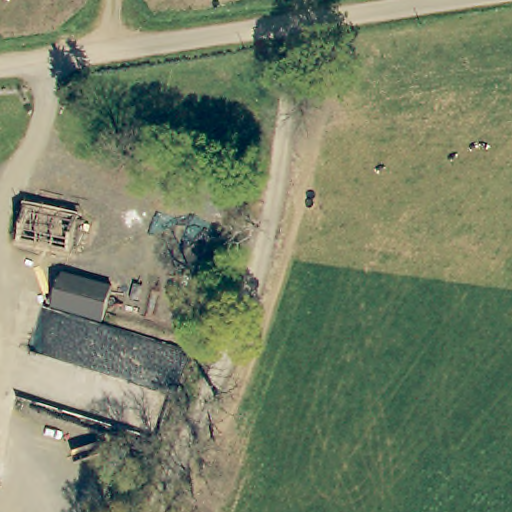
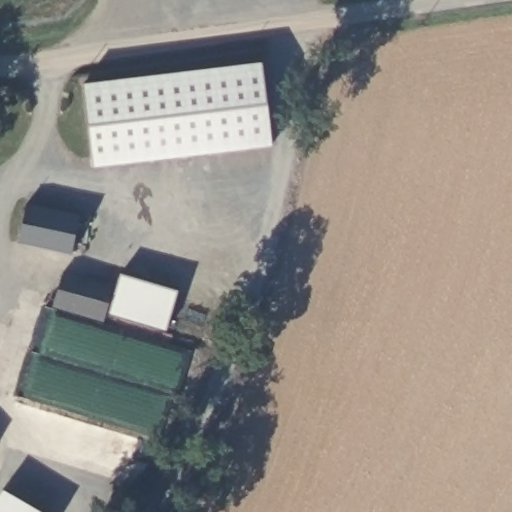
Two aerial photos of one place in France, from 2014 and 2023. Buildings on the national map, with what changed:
new [(266,61),(276,143),(97,165),(87,82),(266,61)]
unchanged [(80,216),(70,253),(69,256),(14,241),(24,203),(80,216)]
unchanged [(114,290),(102,322),(54,309),(65,276),(114,290)]

